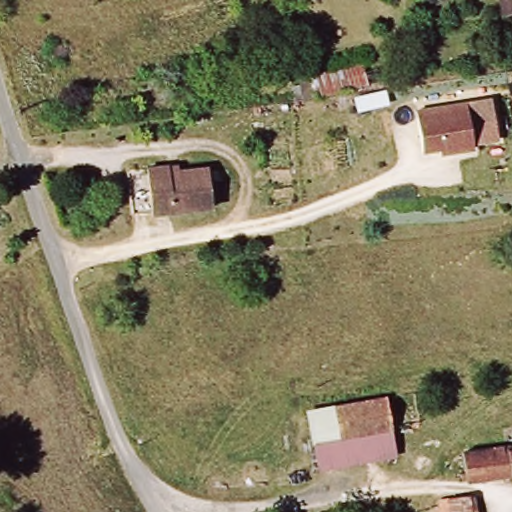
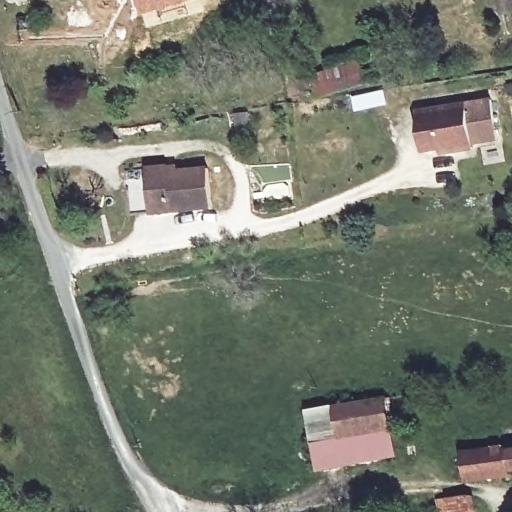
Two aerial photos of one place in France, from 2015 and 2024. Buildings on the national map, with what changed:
new [(140,16),(136,0),(189,0),(140,16)]
unchanged [(511,13),(507,0),(512,0),(512,13),(511,13)]
unchanged [(367,64),(374,85),(310,96),(305,78),(367,64)]
unchanged [(425,154),(417,115),(487,102),(494,142),(476,146),(475,151),(442,157),(442,152),(425,154)]
unchanged [(232,203),(150,212),(146,166),(187,162),(188,168),(227,164),(232,203)]
unchanged [(314,409),(392,397),(404,455),(325,469),(314,409)]
unchanged [(467,451),(512,444),(512,475),(472,481),(467,451)]
unchanged [(443,501),(475,495),(478,512),(450,512),(445,512),(443,501)]

